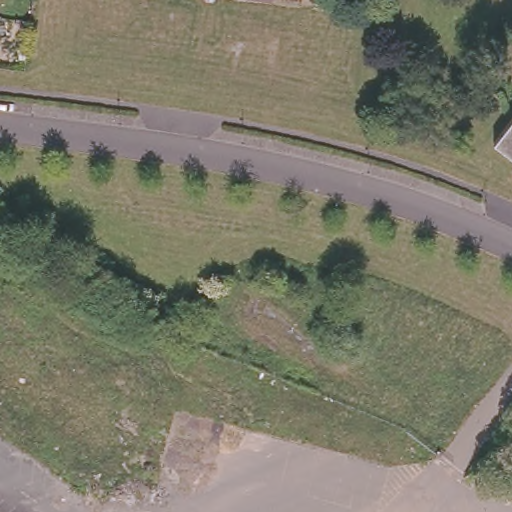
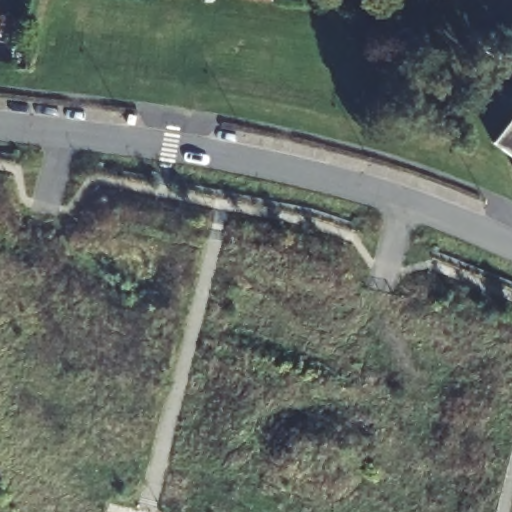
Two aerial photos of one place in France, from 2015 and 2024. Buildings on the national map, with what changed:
unchanged [(259,0),(271,0),(271,1),(259,0)]
unchanged [(481,141),(512,103),(512,165),(481,141)]

